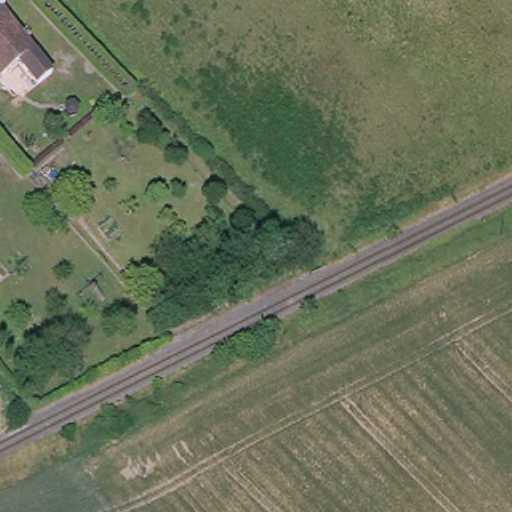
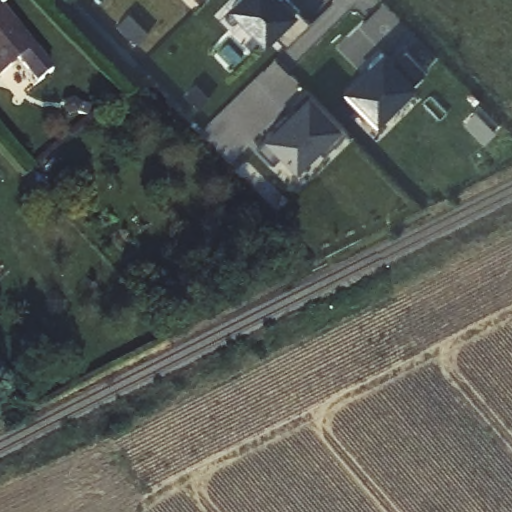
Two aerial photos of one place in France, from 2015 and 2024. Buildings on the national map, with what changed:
new [(266,40),(259,33),(256,36),(242,22),(246,20),(232,5),(238,0),(289,0),(311,22),(286,46),(274,33),(266,40)]
unchanged [(38,84),(18,60),(0,73),(0,6),(33,48),(53,72),(38,84)]
new [(344,90),(384,50),(394,60),(406,49),(427,70),(375,121),(344,90)]
new [(281,152),(274,159),(259,142),(265,136),(310,91),(340,122),(341,120),(348,127),(326,150),(321,145),(298,169),(281,152)]

